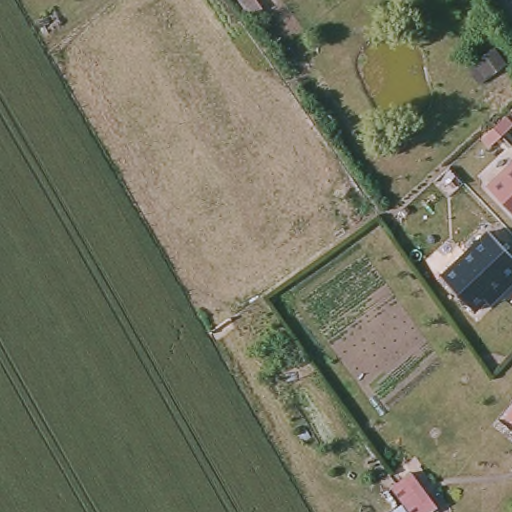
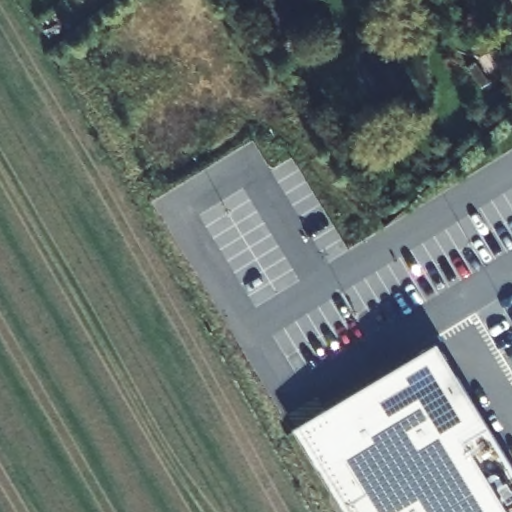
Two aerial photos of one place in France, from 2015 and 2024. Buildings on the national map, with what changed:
unchanged [(246,18),(234,0),(254,0),(259,7),(246,18)]
unchanged [(468,60),(476,55),(496,40),(508,55),(488,70),(480,76),(468,60)]
new [(426,346),(442,337),(451,352),(512,452),(512,512),(355,512),(301,423),(426,346)]
demolished [(512,410),(512,423),(506,418),(512,410)]
demolished [(413,478),(436,507),(440,512),(409,512),(395,491),(413,478)]

